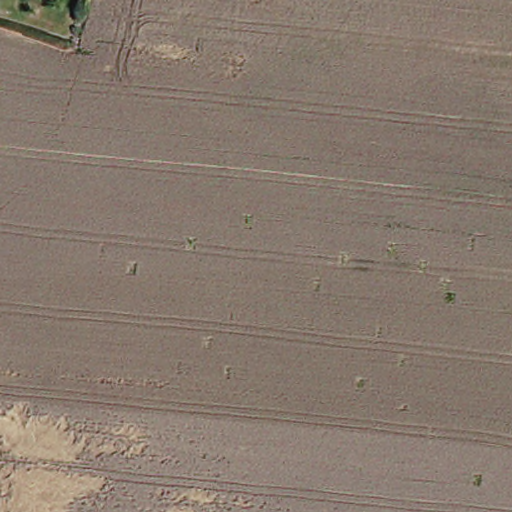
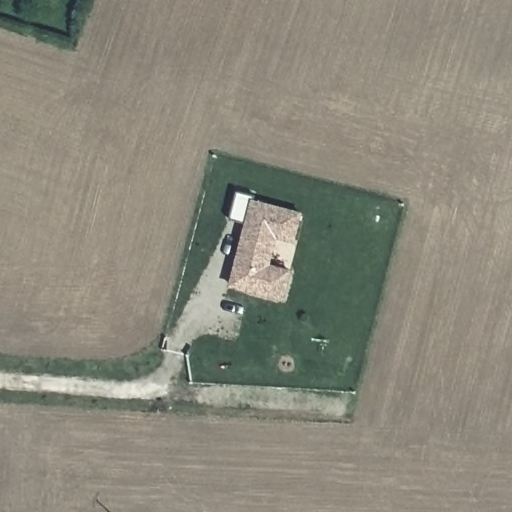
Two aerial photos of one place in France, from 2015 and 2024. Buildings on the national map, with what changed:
new [(247,226),(250,227),(252,220),(231,215),(237,193),(257,198),(255,202),(302,215),(295,243),(277,238),(270,268),(291,273),(283,301),(231,288),(247,226)]

